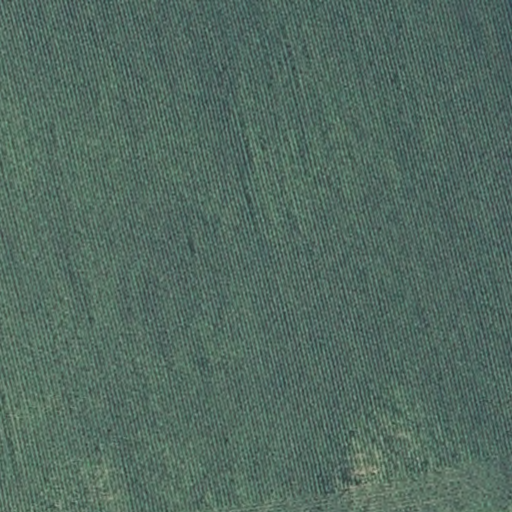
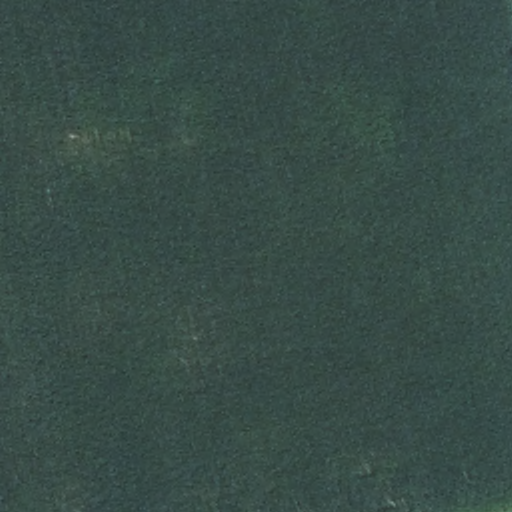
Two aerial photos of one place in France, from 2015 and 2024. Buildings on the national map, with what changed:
[]

